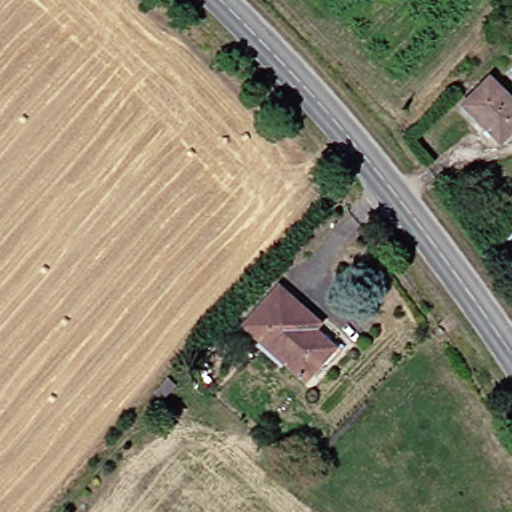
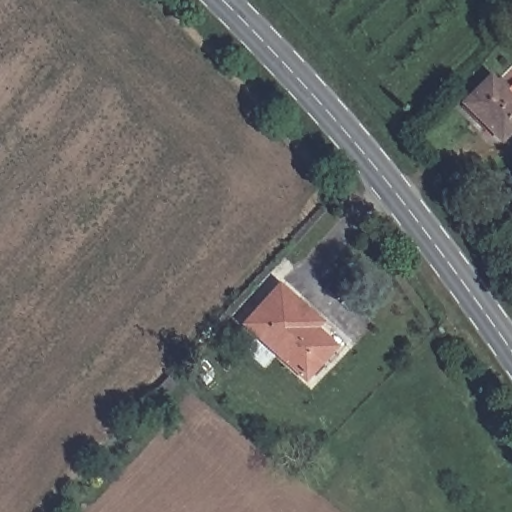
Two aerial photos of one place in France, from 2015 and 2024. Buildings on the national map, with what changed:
unchanged [(512,130),(497,146),(458,110),(485,81),(512,107),(512,130)]
unchanged [(236,322),(272,285),(312,321),(307,327),(326,345),(295,377),(275,359),(253,338),(236,322)]

